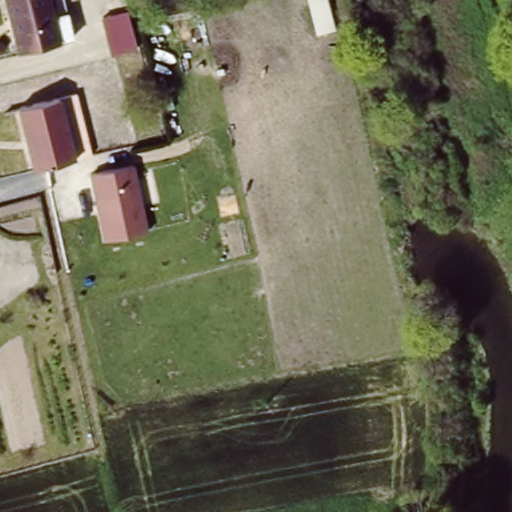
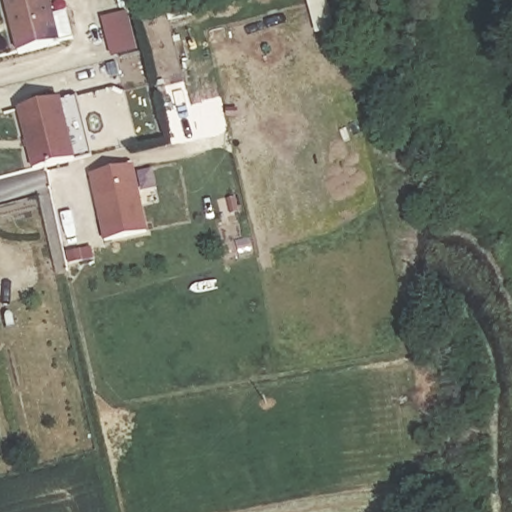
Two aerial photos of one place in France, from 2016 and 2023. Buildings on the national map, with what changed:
unchanged [(55,45),(19,55),(4,0),(43,0),(55,45)]
unchanged [(43,0),(65,0),(75,40),(55,45),(43,0)]
unchanged [(38,169),(22,110),(55,102),(60,100),(77,159),(71,160),(38,169)]
unchanged [(135,160),(150,230),(103,240),(86,172),(135,160)]

